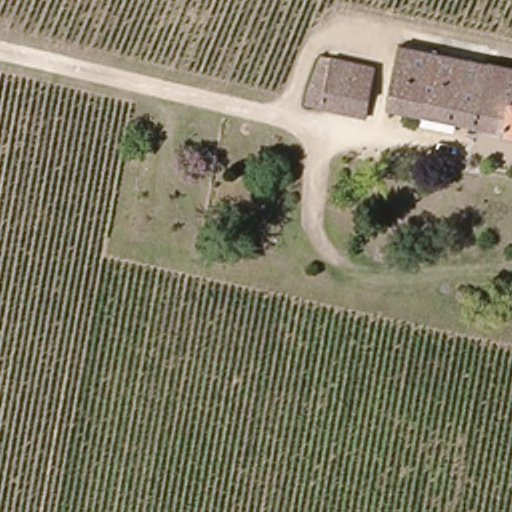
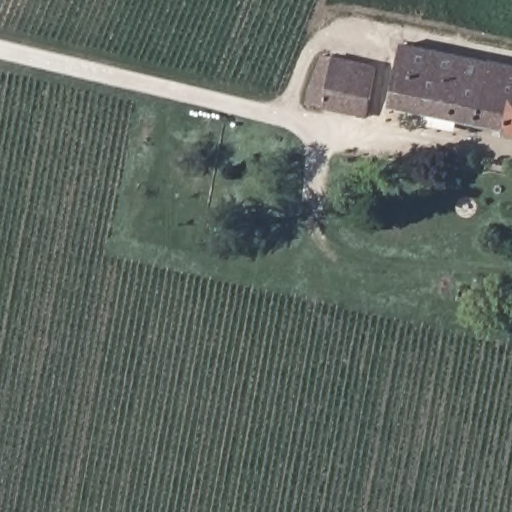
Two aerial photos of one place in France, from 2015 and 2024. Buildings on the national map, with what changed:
unchanged [(483,97),(512,104),(512,115),(506,137),(471,130),(389,111),(403,45),(491,65),(483,97)]
unchanged [(324,109),(307,105),(310,89),(326,53),(378,66),(370,100),(365,119),(324,109)]
unchanged [(483,97),(491,65),(512,69),(512,104),(483,97)]
unchanged [(506,137),(512,115),(512,139),(506,137)]

